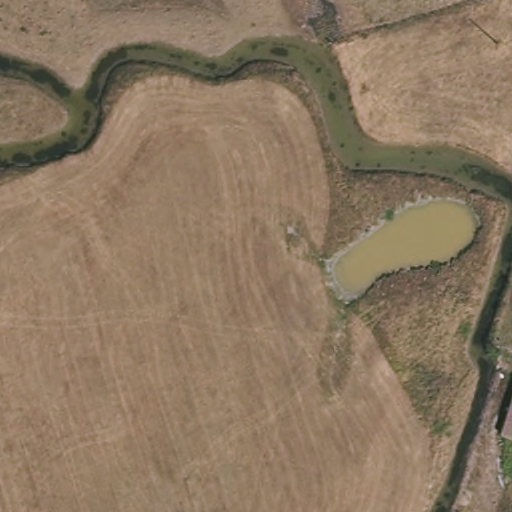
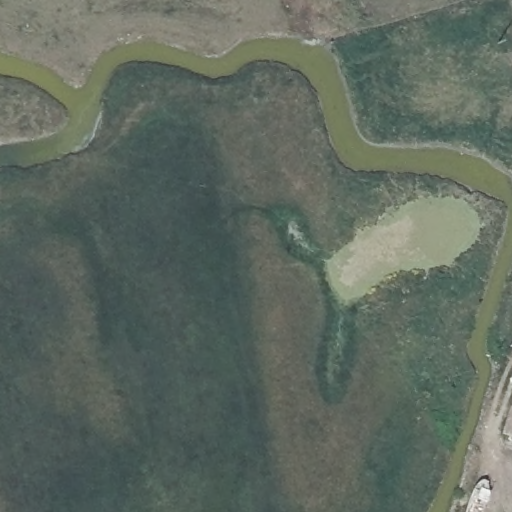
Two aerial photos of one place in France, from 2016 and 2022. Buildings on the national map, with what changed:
unchanged [(512,389),(512,440),(498,435),(512,389)]

